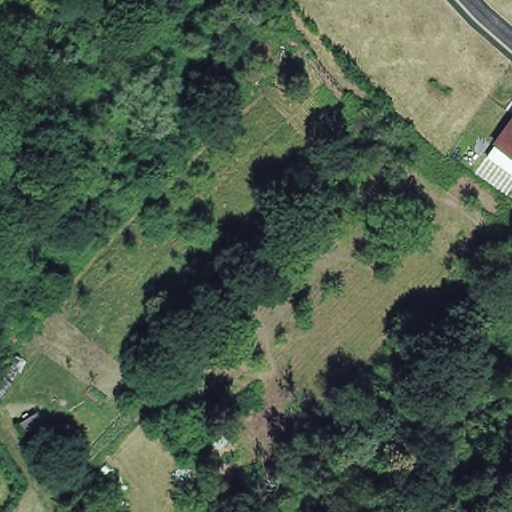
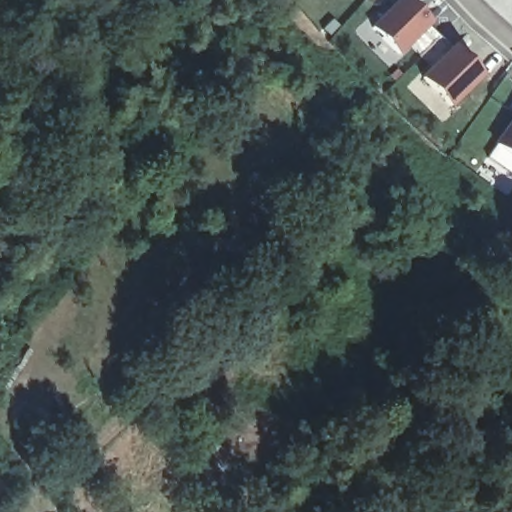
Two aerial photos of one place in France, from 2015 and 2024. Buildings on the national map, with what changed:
new [(421,75),(431,65),(410,42),(397,55),(372,27),(398,0),(405,0),(483,75),(451,107),(421,75)]
unchanged [(496,146),(492,145),(512,119),(512,174),(488,157),(496,146)]

